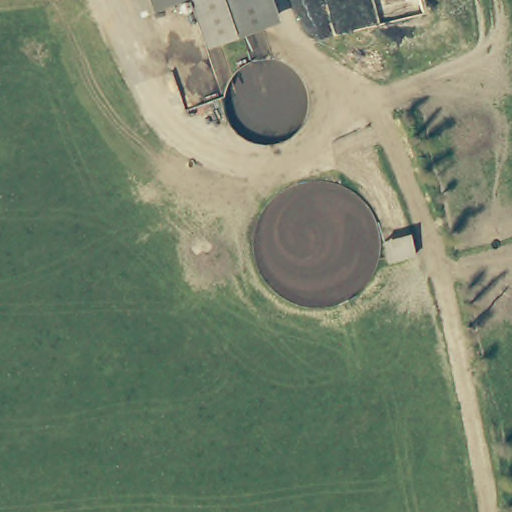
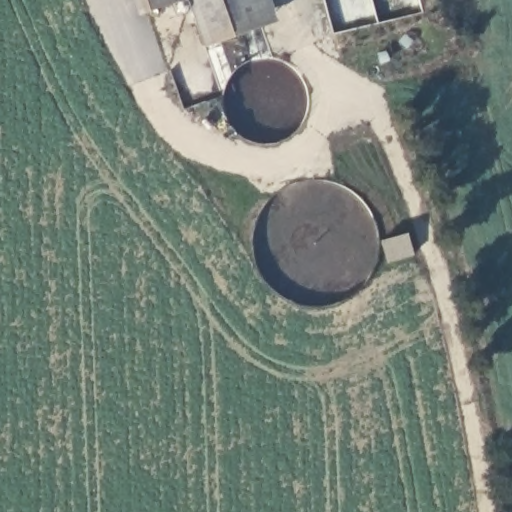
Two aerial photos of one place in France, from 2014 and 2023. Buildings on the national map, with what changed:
unchanged [(151,16),(145,0),(187,0),(151,16)]
unchanged [(281,22),(207,50),(187,0),(273,0),(281,22)]

